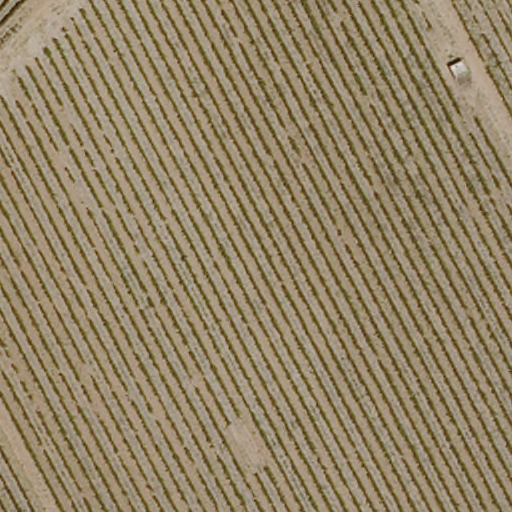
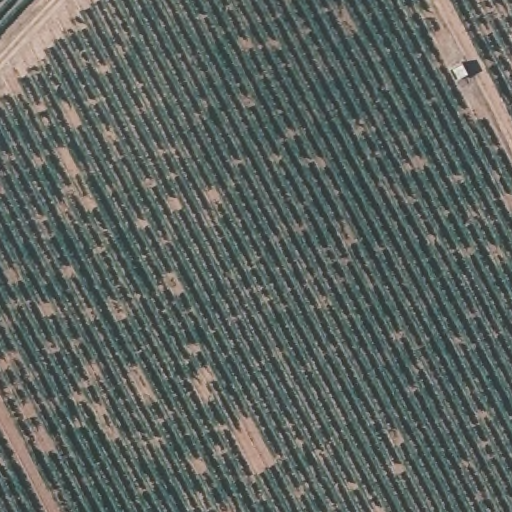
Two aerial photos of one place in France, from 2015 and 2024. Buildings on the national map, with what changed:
unchanged [(457,78),(451,66),(466,59),(472,71),(457,78)]

